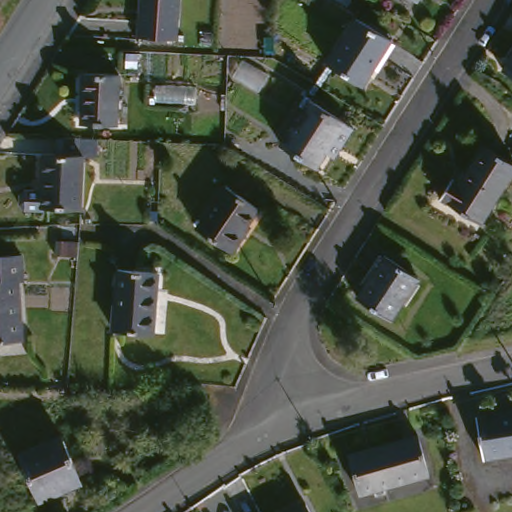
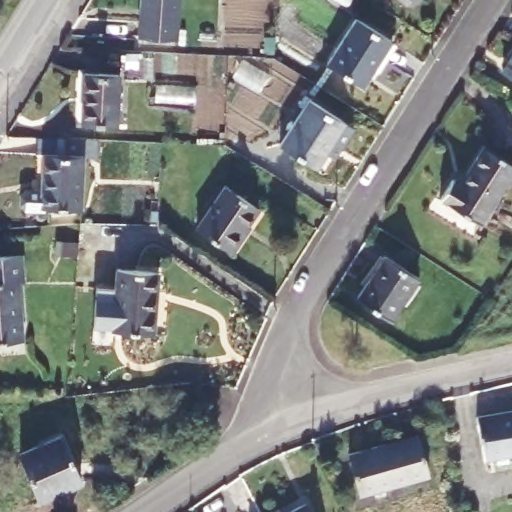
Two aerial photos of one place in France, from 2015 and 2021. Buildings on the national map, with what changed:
unchanged [(139,0),(177,0),(175,43),(138,42),(139,0)]
unchanged [(414,5),(407,0),(417,0),(414,5)]
unchanged [(351,25),(385,46),(356,92),(322,70),(351,25)]
unchanged [(512,86),(501,79),(512,62),(512,86)]
unchanged [(79,77),(114,78),(112,128),(77,127),(79,77)]
unchanged [(307,107),(342,129),(313,175),(278,152),(307,107)]
unchanged [(84,144),(84,156),(79,156),(79,161),(81,161),(79,215),(40,213),(40,216),(24,216),(18,210),(19,200),(24,195),(41,195),(42,160),(55,160),(55,142),(84,144)]
unchanged [(485,152),(512,169),(512,179),(497,201),(467,182),(485,152)]
unchanged [(480,227),(442,203),(454,185),(462,190),(467,182),(497,201),(480,227)]
unchanged [(222,194),(256,217),(228,257),(195,234),(222,194)]
unchanged [(382,261),(417,284),(390,325),(356,302),(382,261)]
unchanged [(21,262),(22,287),(15,287),(18,347),(0,348),(0,263),(21,262)]
unchanged [(110,271),(150,272),(148,333),(107,331),(110,271)]
unchanged [(512,415),(512,459),(483,465),(474,423),(512,415)]
unchanged [(410,439),(422,478),(357,498),(346,459),(410,439)]
unchanged [(60,445),(71,493),(33,502),(22,454),(60,445)]
unchanged [(307,512),(292,512),(304,507),(307,512)]

